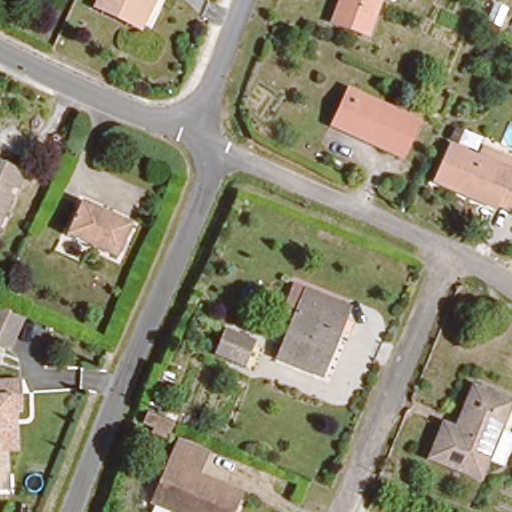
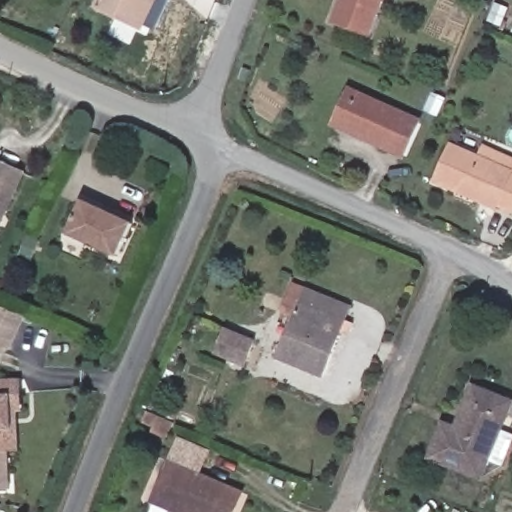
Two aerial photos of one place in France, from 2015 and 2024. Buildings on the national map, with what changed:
unchanged [(133,23),(130,26),(91,6),(94,0),(157,0),(142,28),(133,23)]
unchanged [(327,19),(335,0),(375,0),(361,33),(327,19)]
unchanged [(395,156),(328,125),(343,91),(411,122),(395,156)]
unchanged [(508,212),(494,205),(492,208),(434,181),(451,145),(478,158),(484,145),(512,158),(512,168),(510,172),(512,173),(512,204),(508,212)]
unchanged [(0,226),(0,168),(22,179),(0,226)]
unchanged [(110,210),(111,208),(130,220),(115,255),(69,233),(85,199),(110,210)]
unchanged [(318,372),(276,354),(305,283),(346,300),(318,372)]
unchanged [(7,346),(0,342),(0,303),(22,311),(7,346)]
unchanged [(255,338),(247,364),(215,353),(227,328),(255,338)]
unchanged [(7,446),(9,484),(0,484),(0,375),(18,374),(18,389),(21,389),(20,407),(13,407),(13,421),(21,421),(22,446),(7,446)]
unchanged [(509,400),(475,478),(434,461),(451,423),(457,425),(474,385),(509,400)]
unchanged [(196,472),(262,501),(258,512),(166,512),(145,503),(173,431),(208,443),(196,472)]

